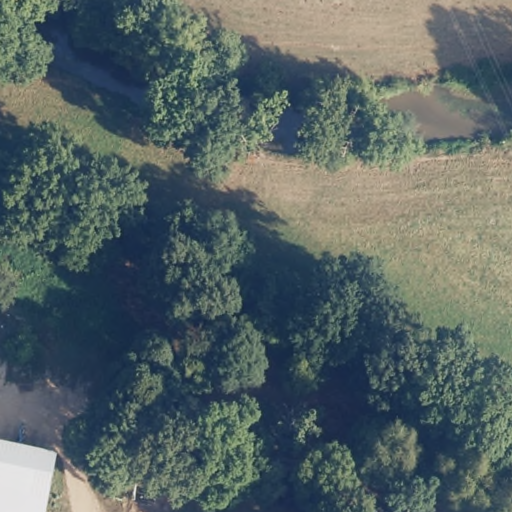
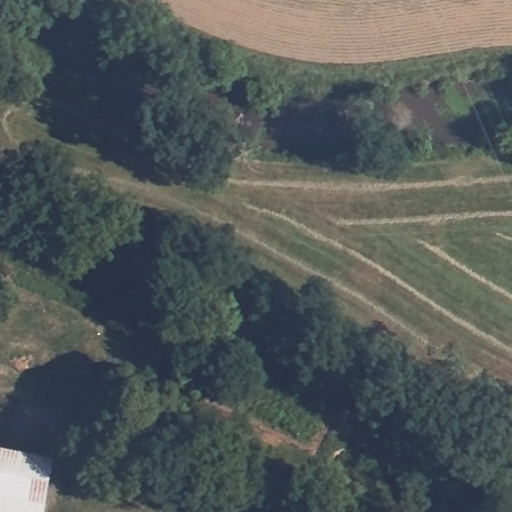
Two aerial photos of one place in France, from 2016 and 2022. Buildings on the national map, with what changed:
unchanged [(0,447),(58,458),(49,512),(0,512),(0,447)]

